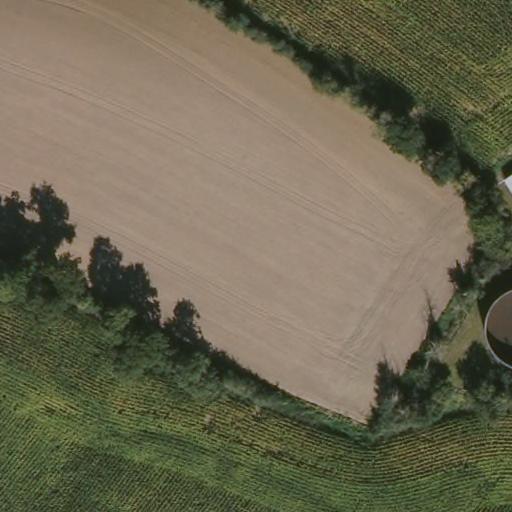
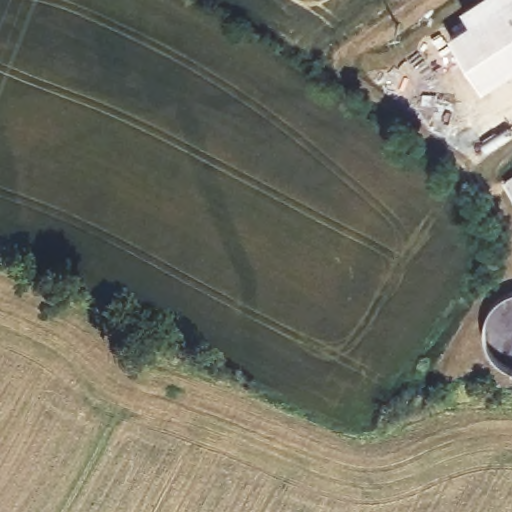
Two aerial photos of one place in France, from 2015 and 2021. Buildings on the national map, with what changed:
new [(512,0),(512,80),(490,93),(445,21),(479,0),(512,0)]
unchanged [(501,179),(512,172),(512,194),(501,179)]

